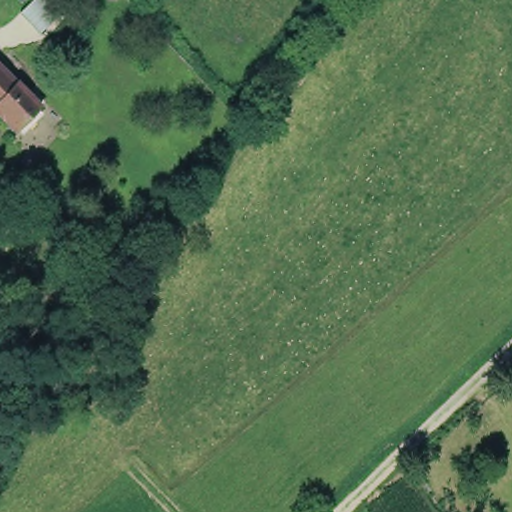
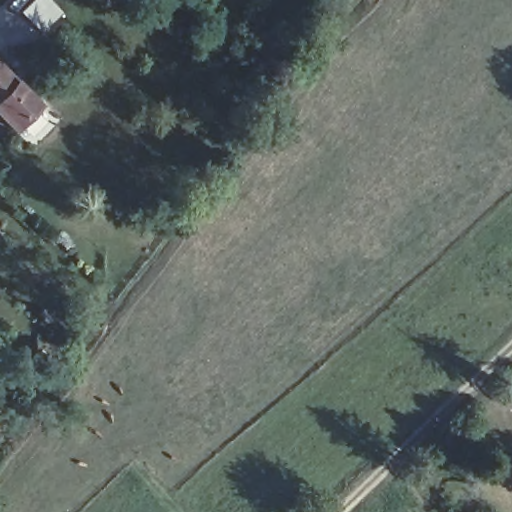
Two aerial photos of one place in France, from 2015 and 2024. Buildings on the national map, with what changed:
unchanged [(0,108),(0,68),(3,66),(3,65),(53,111),(50,115),(29,136),(0,108)]

